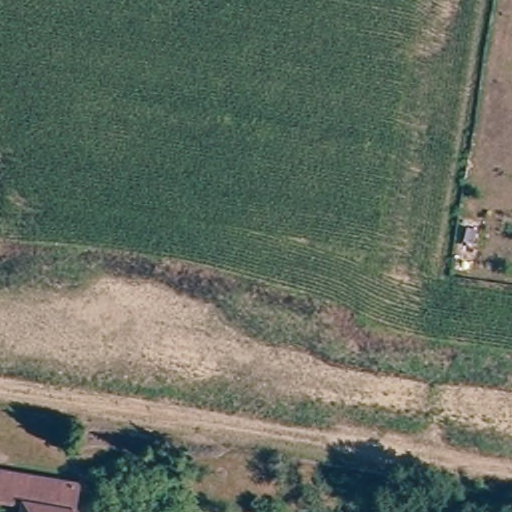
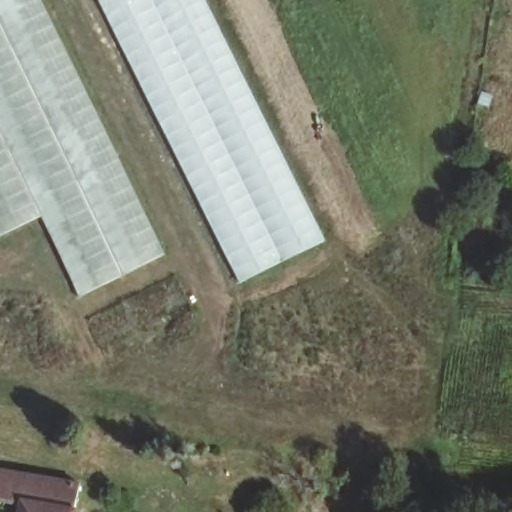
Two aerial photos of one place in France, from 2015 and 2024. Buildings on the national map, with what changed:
new [(0,236),(0,0),(42,0),(167,254),(80,298),(43,217),(0,236)]
new [(240,282),(96,0),(206,0),(324,240),(240,282)]
unchanged [(80,512),(27,512),(28,504),(0,500),(0,469),(85,484),(80,512)]

